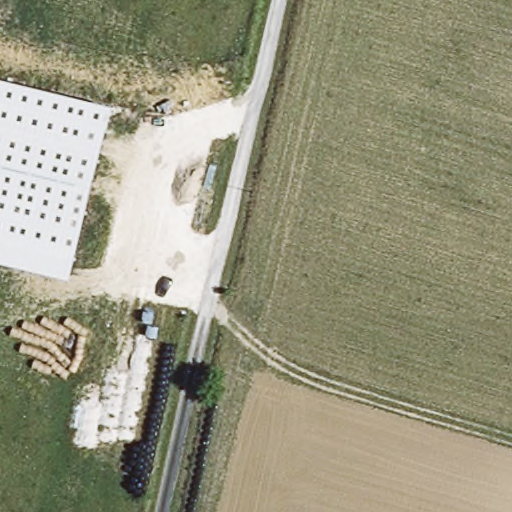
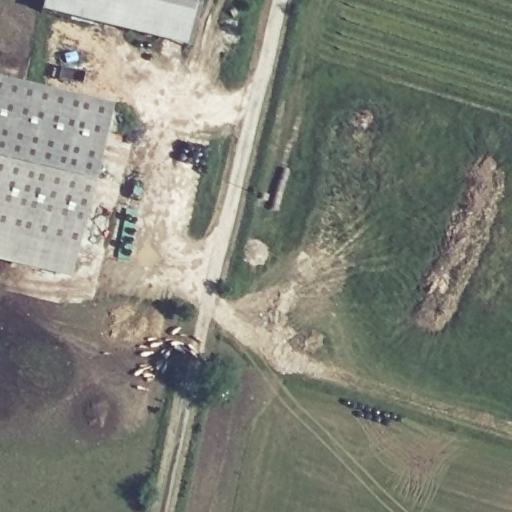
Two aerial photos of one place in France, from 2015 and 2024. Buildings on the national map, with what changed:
new [(40,14),(43,0),(202,0),(190,51),(40,14)]
unchanged [(69,281),(0,264),(0,80),(113,107),(69,281)]

